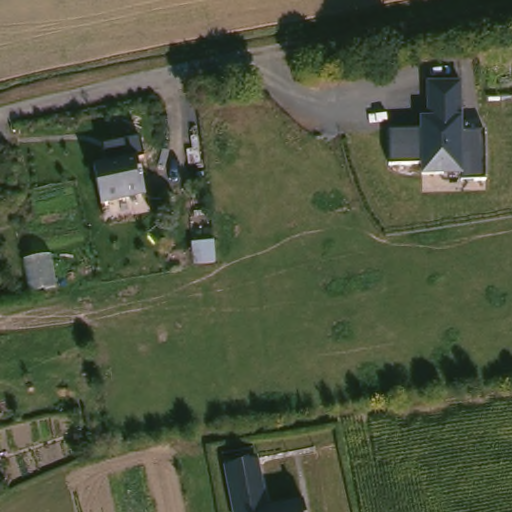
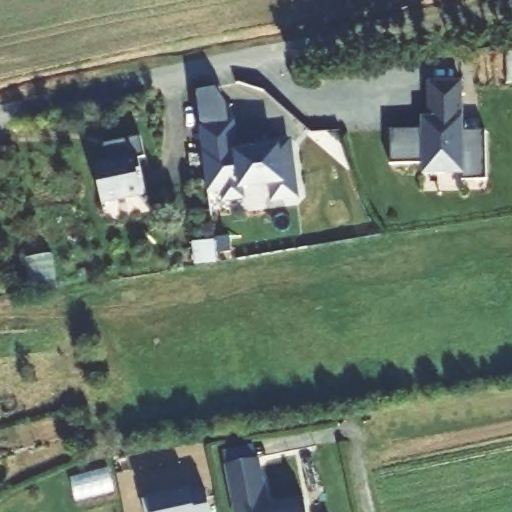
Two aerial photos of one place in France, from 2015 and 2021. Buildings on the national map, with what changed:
unchanged [(463,81),(464,132),(484,132),(484,180),(464,181),(463,175),(423,177),(423,165),(391,164),(392,133),(420,132),(420,118),(428,118),(427,82),(463,81)]
new [(217,88),(228,105),(230,122),(199,126),(195,90),(217,88)]
new [(234,121),(235,150),(289,142),(295,184),(294,184),(298,200),(270,204),(265,188),(243,191),(245,200),(222,203),(220,191),(207,193),(199,125),(234,121)]
unchanged [(104,206),(99,169),(141,161),(149,197),(104,206)]
unchanged [(237,512),(227,466),(257,461),(268,511),(304,504),(305,512),(237,512)]
new [(190,493),(204,489),(210,512),(144,512),(141,498),(189,488),(190,493)]

